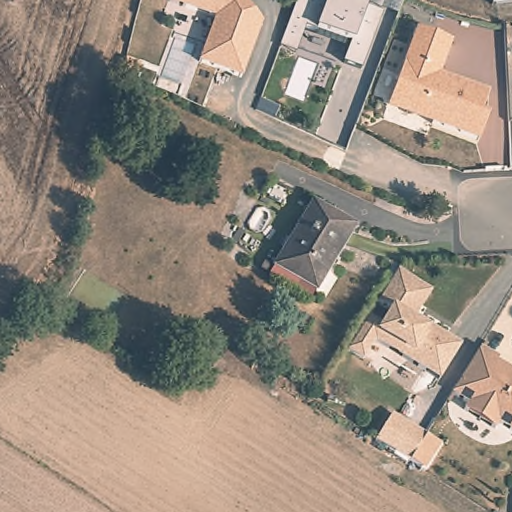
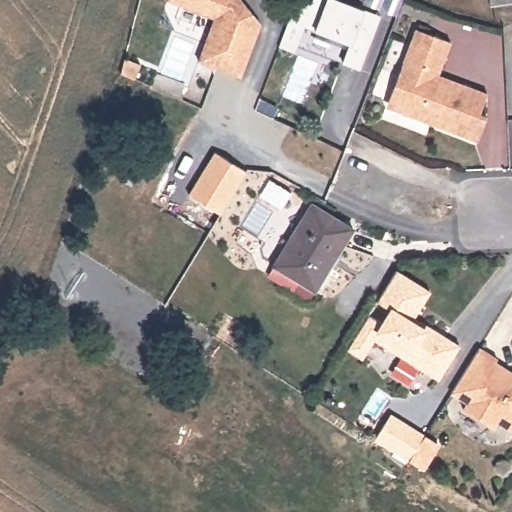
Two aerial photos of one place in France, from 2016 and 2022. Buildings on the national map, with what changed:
unchanged [(212,19),(167,1),(168,0),(244,0),(261,23),(241,77),(199,61),(212,19)]
unchanged [(349,43),(315,30),(304,26),(293,52),(278,47),(296,0),(301,0),(310,3),(311,0),(342,0),(365,8),(381,15),(360,70),(342,64),(349,43)]
unchanged [(490,0),(512,0),(512,3),(490,6),(490,0)]
unchanged [(452,41),(440,75),(487,92),(480,114),(485,116),(476,140),(386,107),(415,29),(452,41)]
new [(215,153),(247,172),(221,215),(189,196),(215,153)]
unchanged [(315,291),(273,266),(311,203),(353,229),(315,291)]
unchanged [(438,379),(423,370),(373,340),(361,358),(346,350),(355,335),(367,315),(382,323),(390,310),(376,301),(385,286),(395,270),(429,291),(413,317),(426,325),(445,336),(459,345),(438,379)]
unchanged [(497,359),(492,366),(510,377),(512,379),(512,436),(508,443),(460,413),(465,407),(448,396),(455,386),(478,347),(497,359)]
unchanged [(424,435),(411,455),(408,460),(375,439),(390,414),(424,435)]

